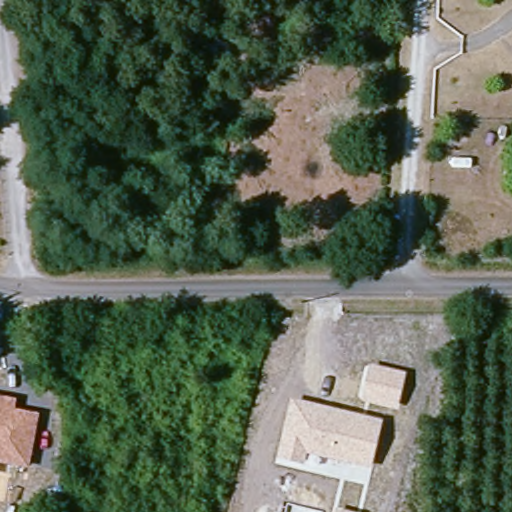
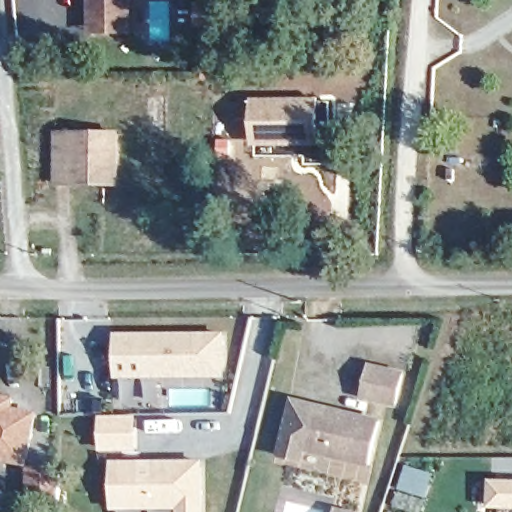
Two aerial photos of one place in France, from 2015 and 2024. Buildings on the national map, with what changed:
new [(96,0),(135,0),(135,32),(96,32),(96,27),(96,0)]
new [(251,147),(251,101),(320,100),(319,146),(251,147)]
new [(77,184),(61,184),(61,134),(123,134),(122,180),(122,184),(77,184)]
new [(226,332),(225,379),(117,380),(116,333),(226,332)]
unchanged [(362,398),(370,365),(408,372),(398,407),(362,398)]
unchanged [(15,408),(39,413),(29,470),(0,465),(0,394),(16,397),(15,408)]
unchanged [(380,420),(369,468),(306,456),(303,465),(277,458),(291,398),(380,420)]
new [(136,415),(137,452),(100,453),(100,416),(136,415)]
new [(204,512),(178,512),(178,509),(112,511),(112,461),(203,461),(204,512)]
new [(489,509),(490,480),(512,480),(512,510),(489,509)]
unchanged [(335,512),(336,508),(351,512),(335,512)]

